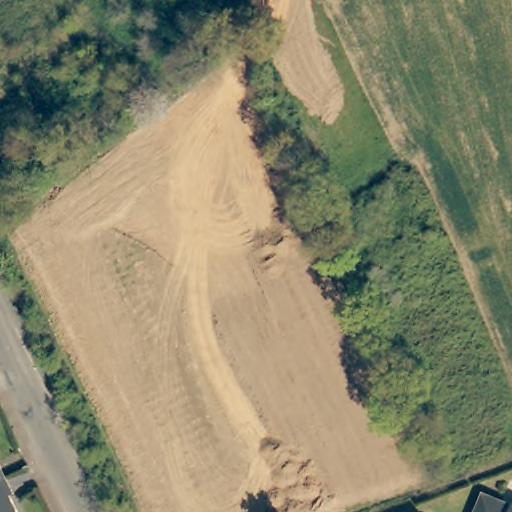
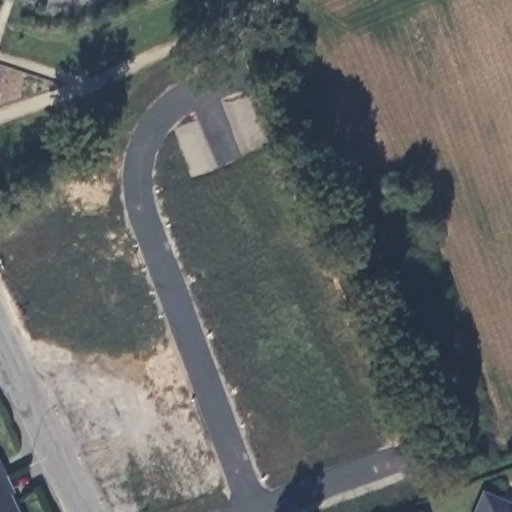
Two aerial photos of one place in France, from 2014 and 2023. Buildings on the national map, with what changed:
unchanged [(10,512),(0,512),(0,479),(7,495),(3,497),(10,512)]
unchanged [(512,502),(512,512),(476,512),(481,498),(509,508),(512,502)]

